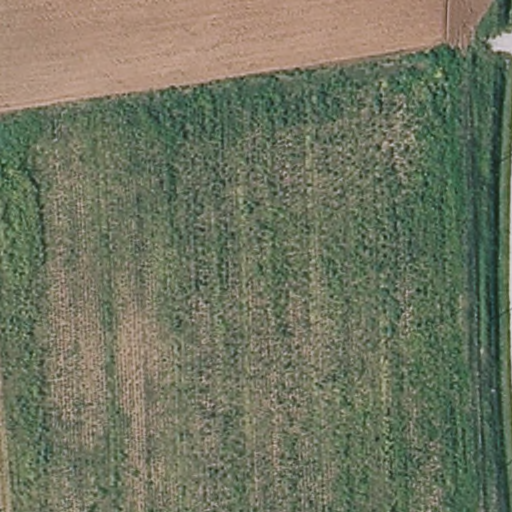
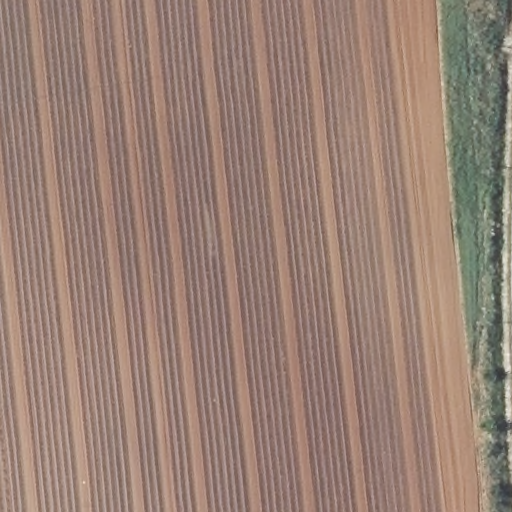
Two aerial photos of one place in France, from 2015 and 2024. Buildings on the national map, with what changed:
[]

